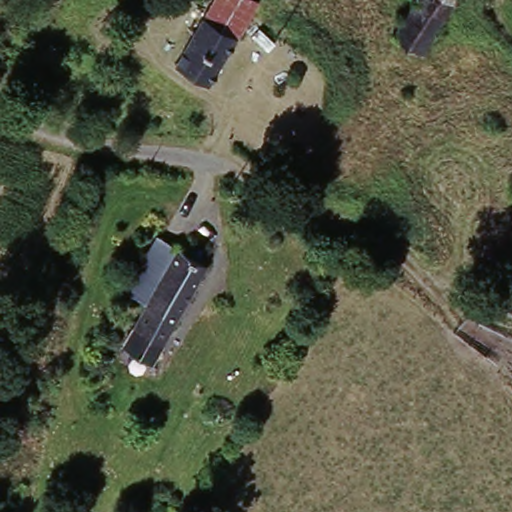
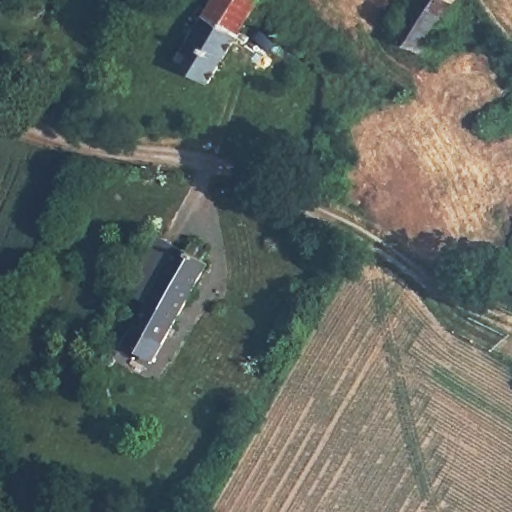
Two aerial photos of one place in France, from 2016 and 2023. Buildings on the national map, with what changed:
unchanged [(216,0),(259,0),(262,1),(251,20),(216,85),(177,63),(216,0)]
unchanged [(448,18),(425,54),(395,37),(419,0),(448,18)]
unchanged [(419,0),(460,0),(448,18),(419,0)]
unchanged [(189,249),(195,238),(206,247),(201,256),(206,259),(152,356),(123,341),(177,243),(189,249)]

